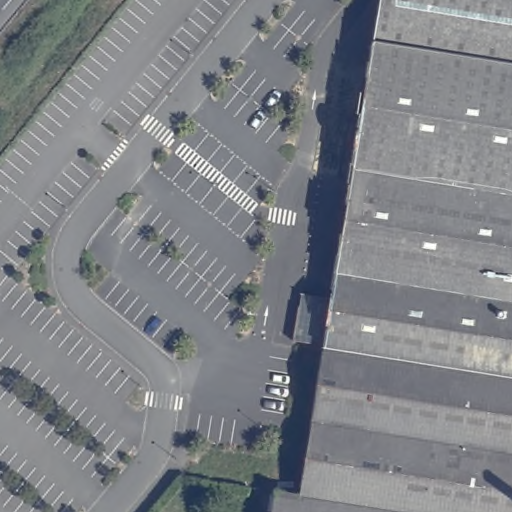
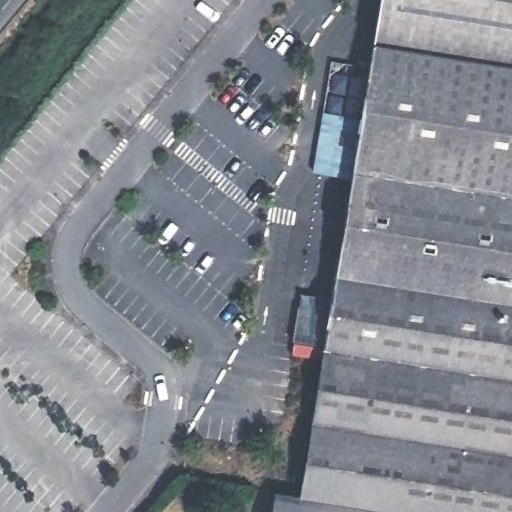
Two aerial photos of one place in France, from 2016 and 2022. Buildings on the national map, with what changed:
unchanged [(512,0),(512,64),(374,42),(381,0),(512,0)]
unchanged [(324,345),(292,340),(300,292),(332,297),(374,42),(512,64),(512,378),(324,347),(324,345)]
unchanged [(275,491),(300,495),(324,347),(512,378),(512,512),(272,512),(275,491)]

